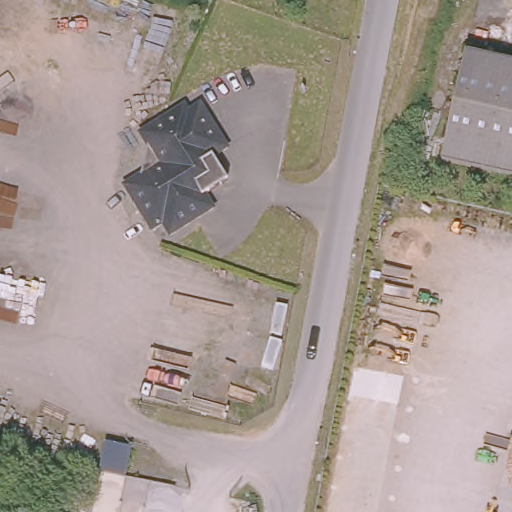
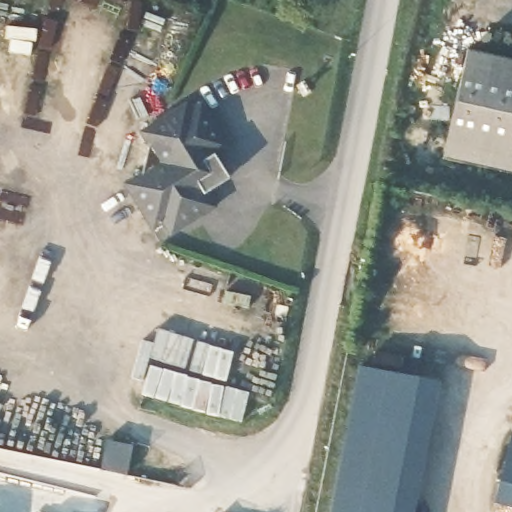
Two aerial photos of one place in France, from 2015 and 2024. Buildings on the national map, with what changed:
unchanged [(465,52),(512,62),(512,175),(441,159),(465,52)]
unchanged [(222,184),(205,194),(214,207),(170,235),(162,222),(152,229),(144,216),(124,185),(140,175),(148,145),(140,132),(185,105),(187,108),(189,111),(200,104),(227,147),(214,156),(224,172),(228,180),(222,184)]
new [(414,512),(328,512),(355,367),(439,385),(414,512)]
unchanged [(508,430),(512,432),(512,511),(492,506),(508,430)]

